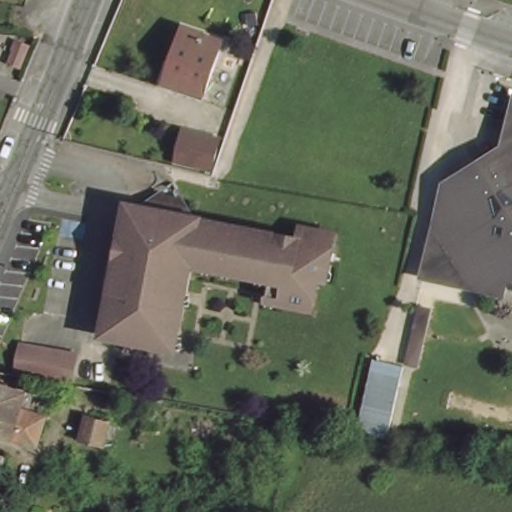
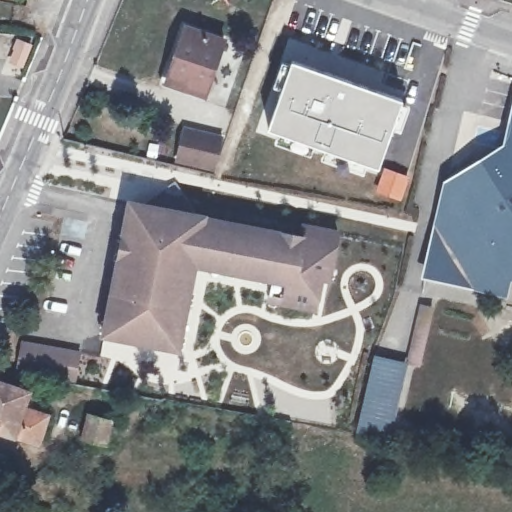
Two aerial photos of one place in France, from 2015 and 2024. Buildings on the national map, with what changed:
unchanged [(190,28),(223,39),(206,91),(170,79),(190,28)]
new [(287,56),(402,98),(377,169),(264,128),(287,56)]
unchanged [(504,155),(512,121),(512,245),(509,257),(501,292),(421,273),(444,184),(467,167),(476,172),(504,155)]
new [(189,127),(225,135),(213,166),(177,158),(189,127)]
unchanged [(168,353),(108,340),(102,338),(104,326),(130,206),(140,208),(163,193),(176,185),(197,220),(205,224),(299,243),(301,233),(335,239),(330,268),(327,285),(320,283),(312,317),(283,310),(268,307),(269,300),(271,285),(259,282),(232,276),(209,271),(194,268),(189,292),(186,308),(179,341),(176,355),(168,353)]
unchanged [(512,245),(512,262),(509,257),(512,245)]
unchanged [(419,305),(433,308),(420,366),(407,363),(419,305)]
unchanged [(19,331),(79,344),(72,374),(14,365),(19,331)]
unchanged [(372,352),(406,358),(389,435),(356,423),(372,352)]
unchanged [(28,387),(20,405),(47,415),(35,444),(0,434),(0,380),(28,387)]
unchanged [(81,437),(87,412),(112,417),(107,440),(81,437)]

